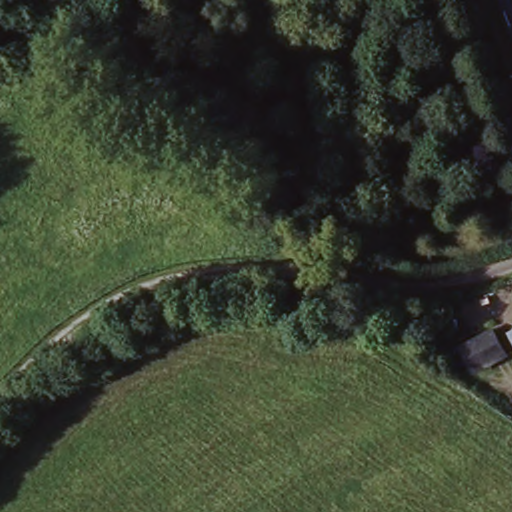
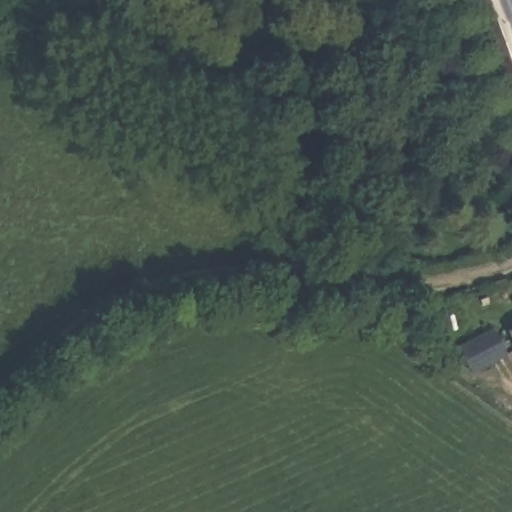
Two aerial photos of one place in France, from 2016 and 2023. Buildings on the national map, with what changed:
unchanged [(512,333),(512,348),(506,336),(512,333)]
unchanged [(485,335),(500,362),(467,375),(453,349),(485,335)]

